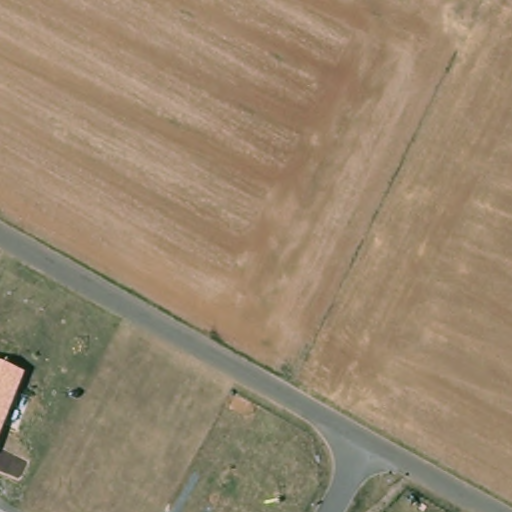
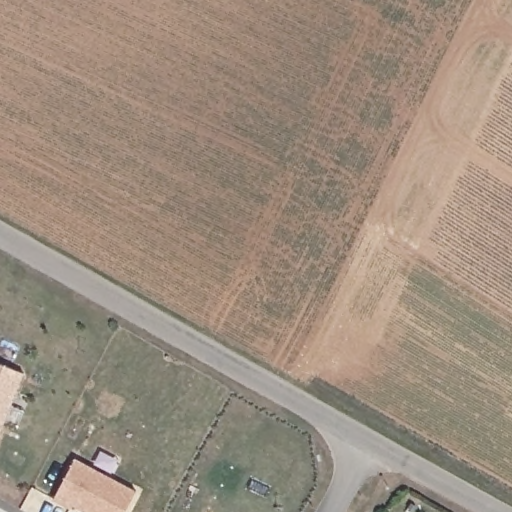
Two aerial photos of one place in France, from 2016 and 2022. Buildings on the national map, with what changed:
unchanged [(25,374),(0,439),(0,364),(25,374)]
new [(71,506),(69,508),(53,500),(74,459),(136,491),(125,512),(84,512),(71,506)]

